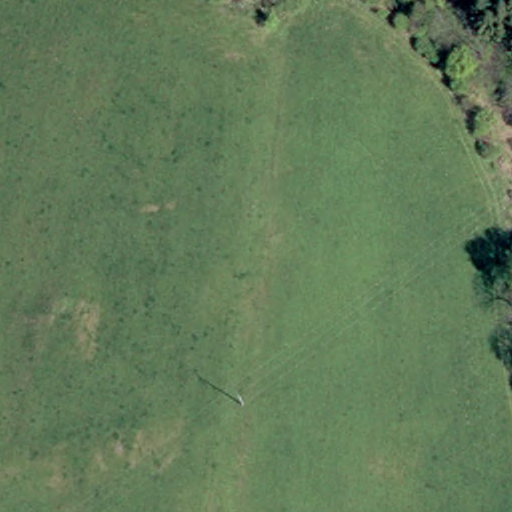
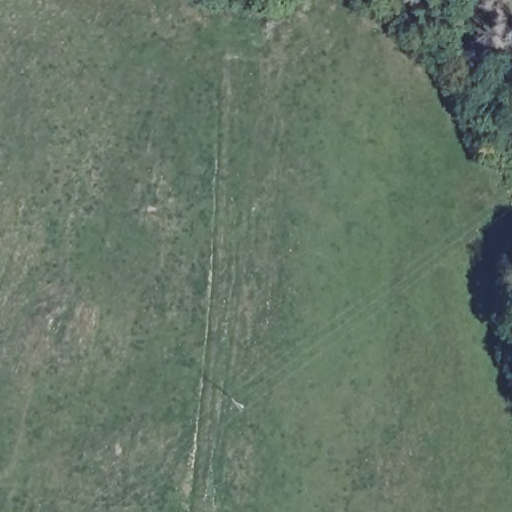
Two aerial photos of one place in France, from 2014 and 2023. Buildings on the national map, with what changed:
[]

